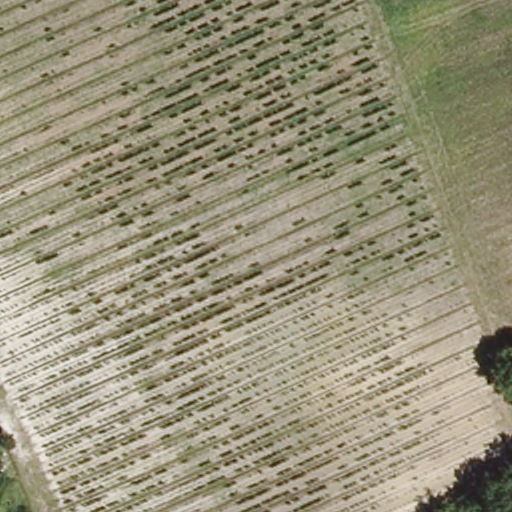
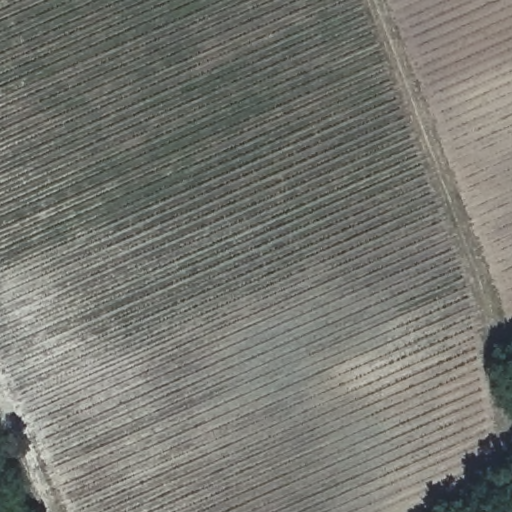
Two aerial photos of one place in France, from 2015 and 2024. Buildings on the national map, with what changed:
[]

